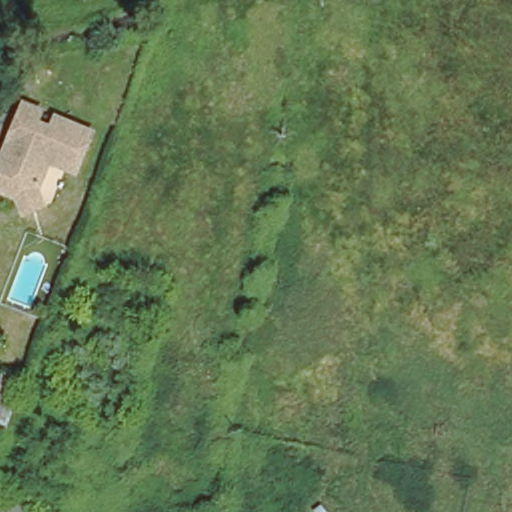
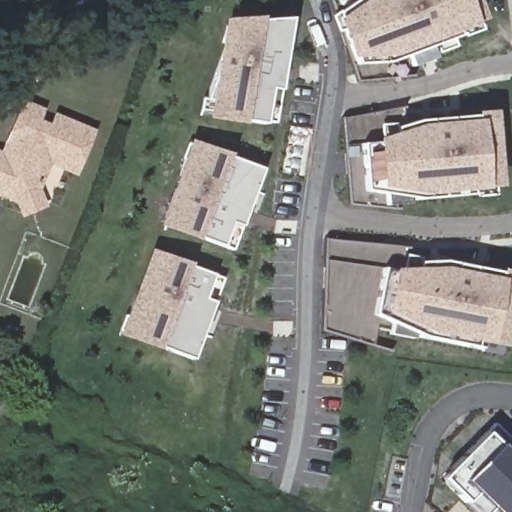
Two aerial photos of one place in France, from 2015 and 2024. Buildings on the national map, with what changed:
new [(487,0),(494,19),(489,20),(492,30),(409,56),(417,80),(369,84),(343,0),(344,0),(487,0)]
new [(270,124),(225,116),(208,110),(210,98),(228,45),(234,22),(242,21),(296,17),(284,107),(282,125),(270,124)]
unchanged [(14,201),(0,195),(0,155),(19,106),(36,114),(32,124),(47,130),(51,120),(88,135),(71,175),(45,164),(34,192),(40,209),(20,217),(14,201)]
new [(335,109),(392,106),(393,121),(484,120),(492,199),(423,206),(419,182),(343,185),(335,109)]
new [(189,161),(194,140),(209,145),(270,170),(240,251),(180,230),(172,228),(181,190),(189,161)]
new [(318,234),(422,241),(422,259),(507,278),(492,365),(317,335),(318,234)]
new [(144,287),(161,252),(172,254),(228,277),(198,359),(135,335),(122,331),(130,315),(144,287)]
new [(486,431),(512,461),(512,512),(474,512),(442,477),(486,431)]
demolished [(0,505),(2,500),(26,510),(25,512),(0,512),(0,505)]

